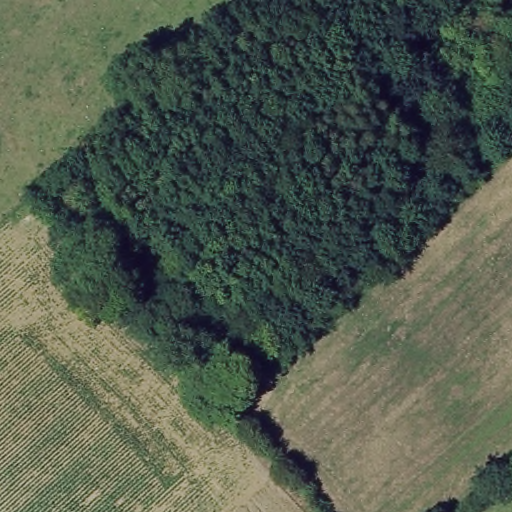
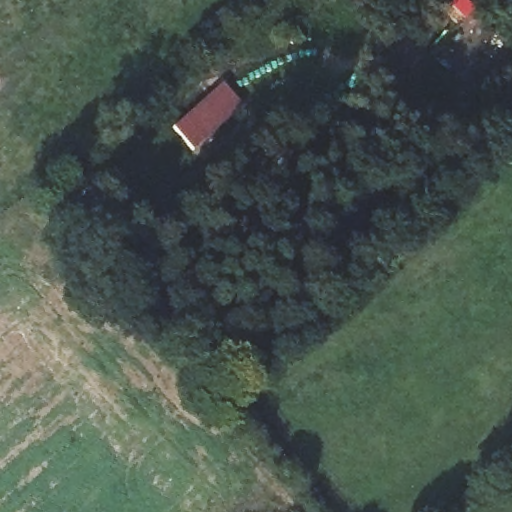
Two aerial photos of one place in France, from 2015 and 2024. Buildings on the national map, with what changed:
new [(243,106),(193,150),(173,128),(223,83),(243,106)]

